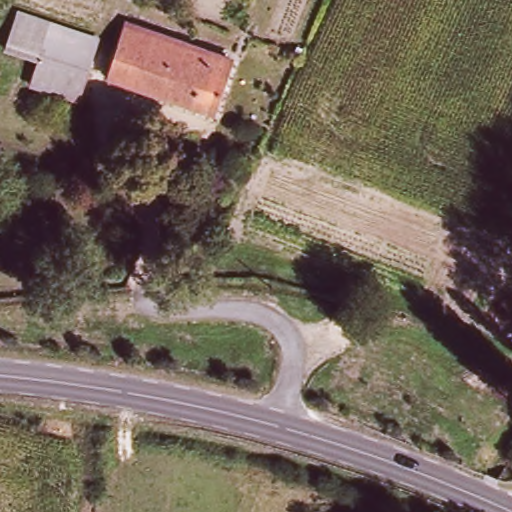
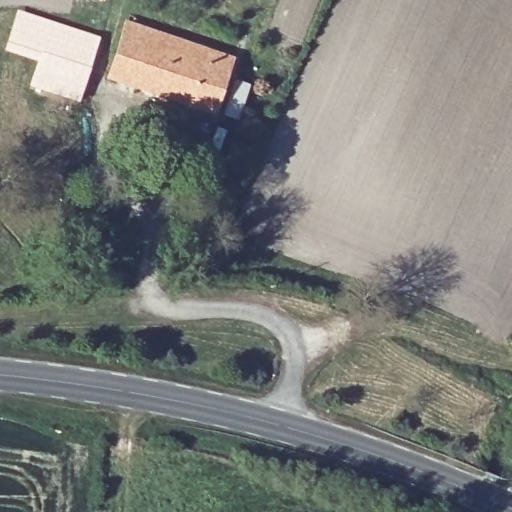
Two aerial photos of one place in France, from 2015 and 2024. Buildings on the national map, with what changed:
unchanged [(31,86),(39,62),(5,51),(19,9),(100,37),(80,103),(31,86)]
unchanged [(230,61),(212,117),(107,82),(127,25),(230,61)]

